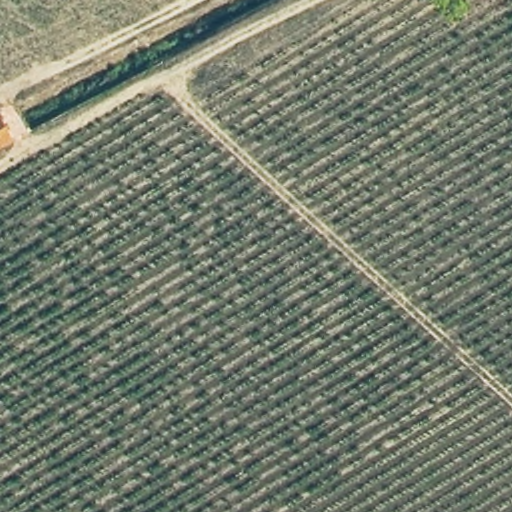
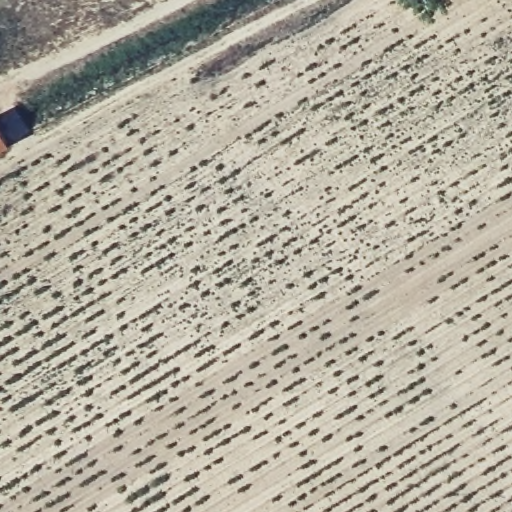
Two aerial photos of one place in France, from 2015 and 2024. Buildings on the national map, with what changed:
unchanged [(1,133),(3,136),(4,138),(7,144),(0,147),(0,132),(1,133)]

